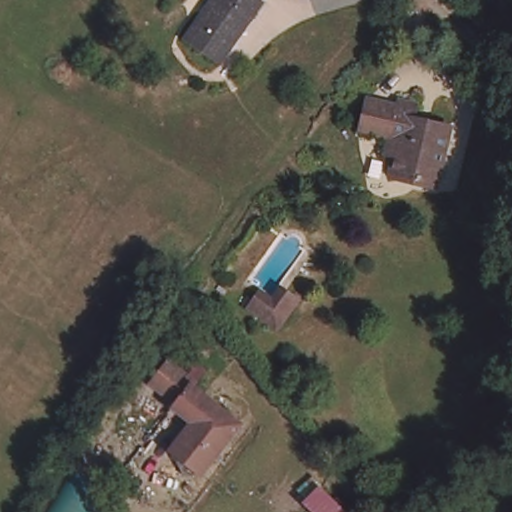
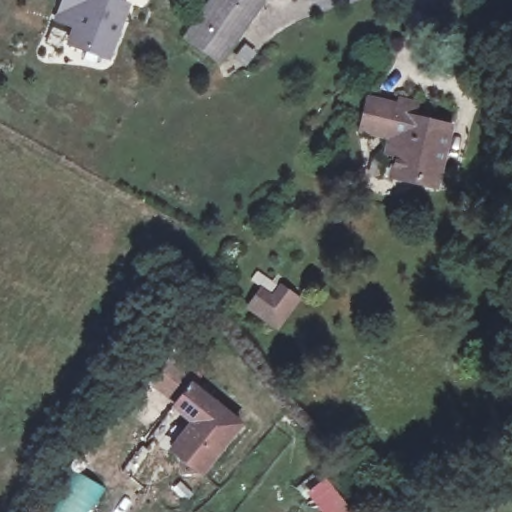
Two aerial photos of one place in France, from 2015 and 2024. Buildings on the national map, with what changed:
new [(61,0),(121,0),(131,4),(110,61),(65,45),(71,28),(53,22),(61,0)]
unchanged [(183,40),(210,0),(255,0),(254,1),(256,3),(216,62),(183,40)]
unchanged [(412,110),(408,125),(442,134),(427,189),(386,179),(390,160),(381,158),(385,139),(355,130),(361,105),(391,112),(394,105),(412,110)]
unchanged [(258,285),(272,295),(280,284),(301,299),(278,331),(244,308),(258,285)]
unchanged [(195,381),(191,386),(242,423),(203,476),(184,478),(180,443),(194,423),(174,408),(177,402),(152,383),(167,362),(195,381)]
unchanged [(70,471),(101,491),(89,512),(46,512),(70,471)]
unchanged [(302,501),(294,493),(310,478),(319,486),(346,512),(312,512),(302,503),(302,501)]

